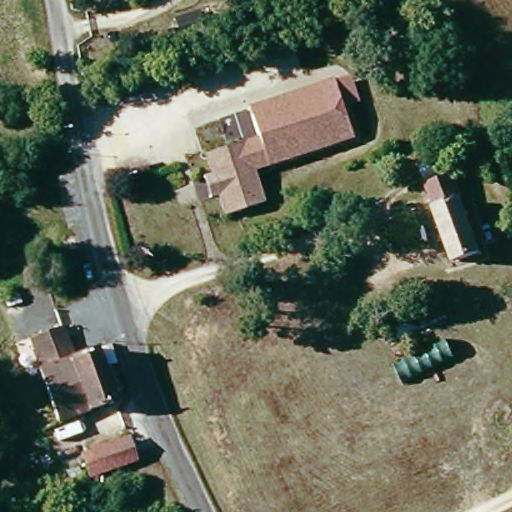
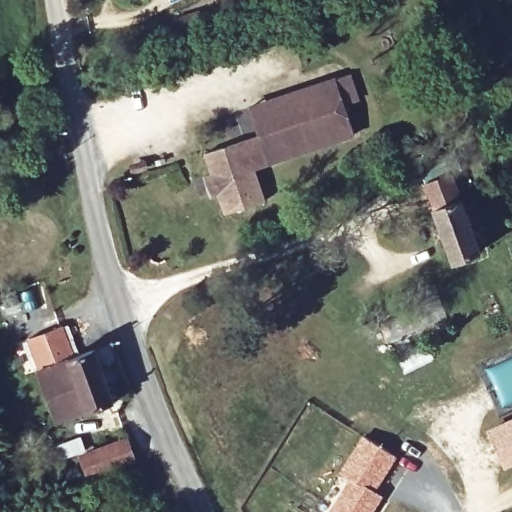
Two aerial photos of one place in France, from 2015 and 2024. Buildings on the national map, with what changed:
unchanged [(351,73),(360,100),(345,105),(354,137),(267,166),(249,105),(351,73)]
unchanged [(232,199),(222,199),(214,174),(223,170),(218,151),(256,141),(273,204),(236,214),(232,199)]
demolished [(378,149),(383,159),(390,156),(400,180),(365,192),(357,168),(367,164),(365,155),(378,149)]
unchanged [(489,252),(465,260),(439,182),(462,174),(489,252)]
unchanged [(125,400),(61,417),(39,340),(82,327),(87,348),(109,346),(125,400)]
new [(512,420),(512,461),(507,463),(491,429),(512,420)]
new [(371,512),(328,512),(350,477),(340,471),(362,435),(395,457),(373,491),(380,496),(371,512)]
unchanged [(82,453),(129,441),(134,460),(87,473),(82,453)]

